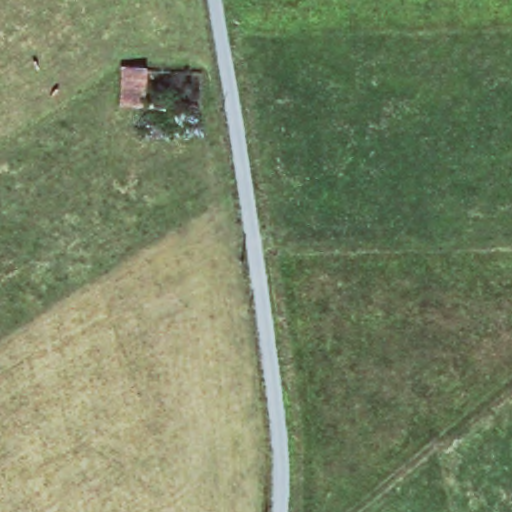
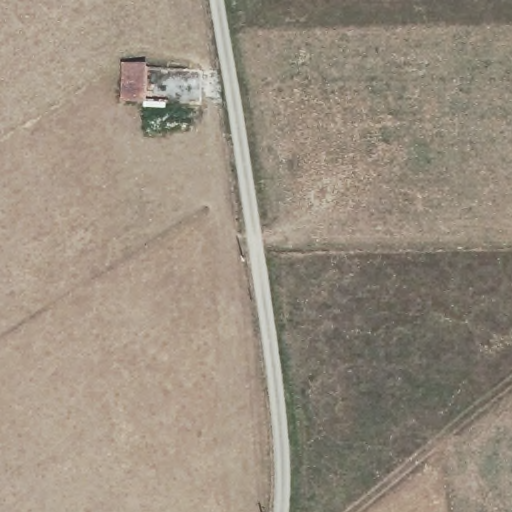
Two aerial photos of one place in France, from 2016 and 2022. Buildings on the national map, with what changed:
unchanged [(150,66),(146,106),(121,104),(122,84),(125,63),(150,66)]

